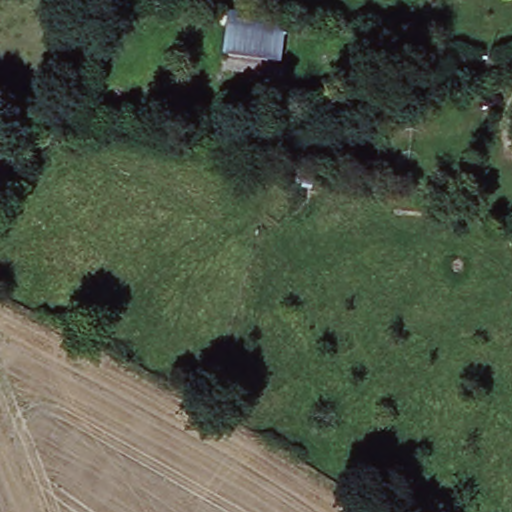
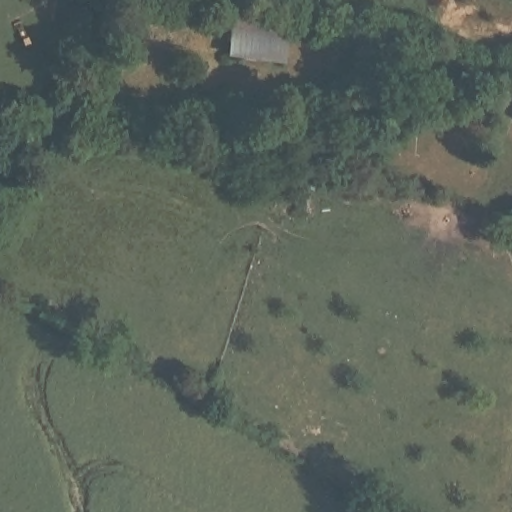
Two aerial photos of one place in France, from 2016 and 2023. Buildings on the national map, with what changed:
unchanged [(283,24),(280,62),(225,56),(230,16),(283,24)]
unchanged [(173,25),(171,35),(160,34),(161,23),(173,25)]
unchanged [(346,166),(362,168),(360,180),(345,177),(346,166)]
unchanged [(315,175),(312,186),(286,180),(288,169),(315,175)]

